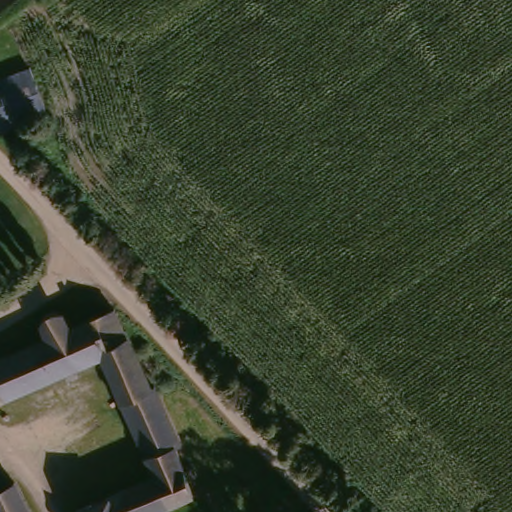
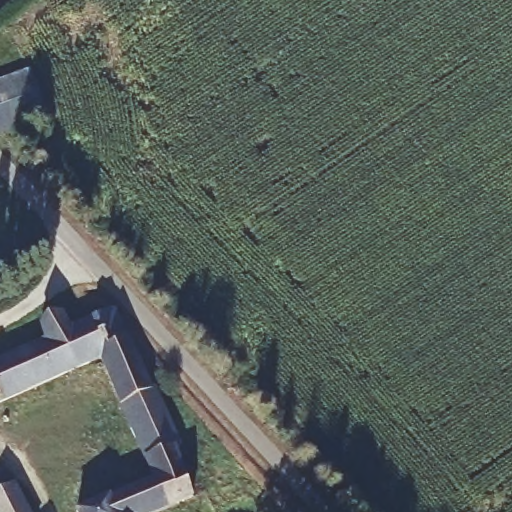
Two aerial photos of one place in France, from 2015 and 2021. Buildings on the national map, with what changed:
unchanged [(24,77),(42,120),(0,133),(0,84),(24,77)]
unchanged [(181,507),(170,512),(77,512),(151,479),(100,363),(0,406),(0,363),(45,343),(39,326),(42,322),(46,319),(51,317),(56,317),(62,319),(70,332),(115,314),(150,391),(156,389),(182,449),(178,453),(195,501),(181,507)]
unchanged [(3,483),(18,512),(0,512),(0,485),(3,483)]

